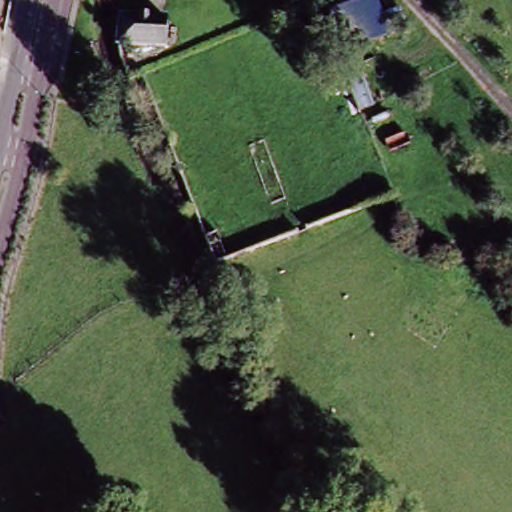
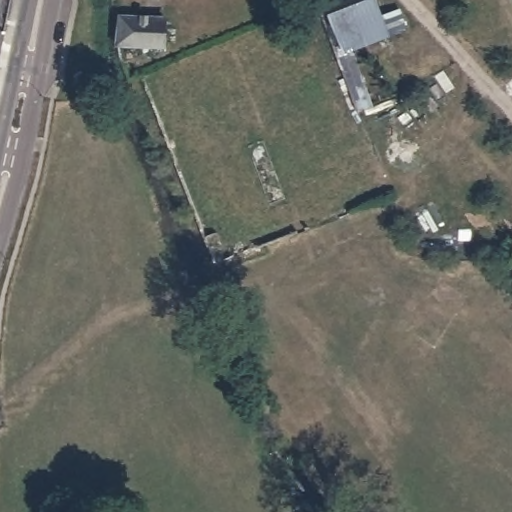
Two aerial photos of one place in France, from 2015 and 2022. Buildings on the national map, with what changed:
unchanged [(338,45),(325,0),(368,0),(380,30),(338,45)]
unchanged [(164,51),(118,49),(121,21),(165,24),(164,51)]

